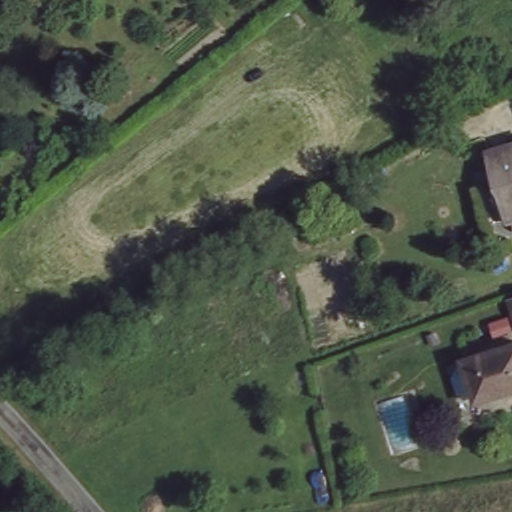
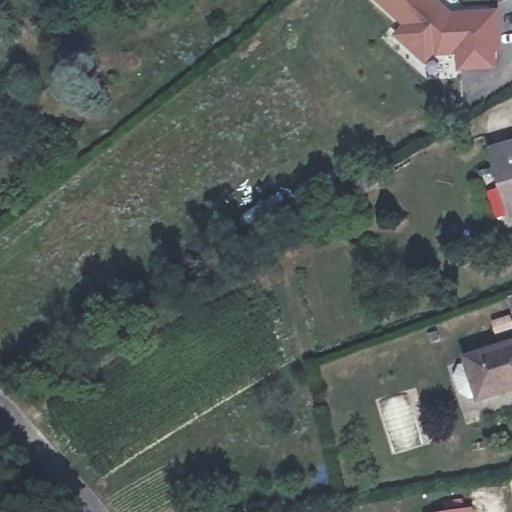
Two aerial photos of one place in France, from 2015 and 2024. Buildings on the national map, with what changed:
new [(456,73),(456,56),(452,56),(449,58),(435,57),(433,56),(424,65),(392,36),(402,25),(374,0),(438,0),(451,13),(499,9),(502,53),(497,54),(497,70),(456,73)]
unchanged [(501,148),(512,146),(512,214),(501,148)]
unchanged [(430,353),(427,339),(435,337),(439,350),(430,353)]
unchanged [(481,399),(468,357),(512,343),(512,389),(481,399)]
new [(474,512),(450,512),(473,508),(474,512)]

